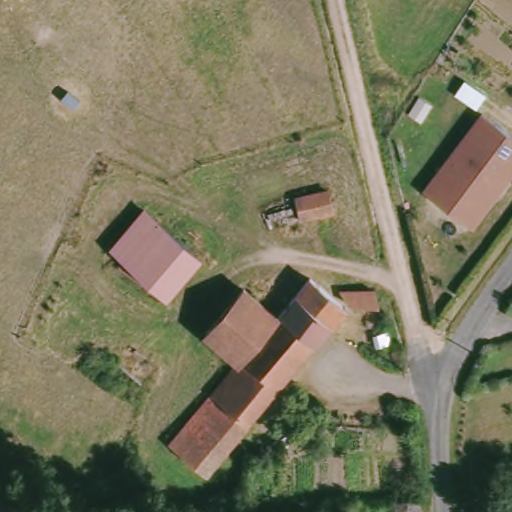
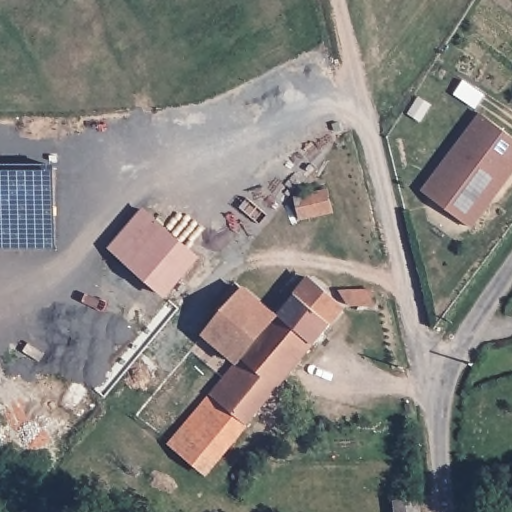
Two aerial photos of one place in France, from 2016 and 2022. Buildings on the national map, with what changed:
unchanged [(482,118),(512,140),(512,179),(498,199),(490,194),(483,203),(484,209),(470,229),(435,204),(425,197),(438,179),(482,118)]
new [(0,250),(0,168),(56,168),(56,250),(0,250)]
unchanged [(323,187),(327,208),(296,215),(291,194),(323,187)]
unchanged [(106,244),(139,207),(193,254),(161,292),(108,245),(106,244)]
unchanged [(233,359),(199,331),(238,286),(273,313),(305,274),(340,304),(241,422),(204,391),(233,359)]
unchanged [(368,287),(374,303),(344,302),(336,288),(368,287)]
unchanged [(241,422),(201,469),(164,440),(204,391),(241,422)]
unchanged [(414,496),(415,512),(392,512),(391,497),(414,496)]

